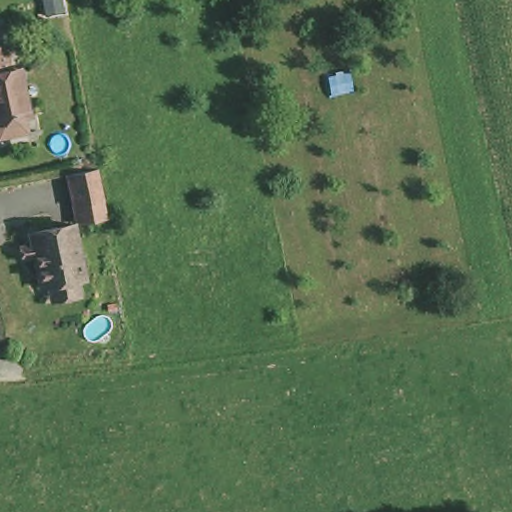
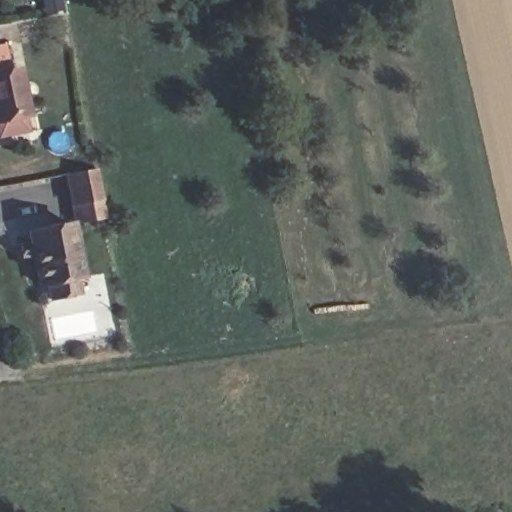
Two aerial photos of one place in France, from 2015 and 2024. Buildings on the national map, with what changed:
unchanged [(17,115),(13,115),(16,131),(0,134),(0,69),(8,68),(17,115)]
unchanged [(97,168),(107,217),(77,222),(67,174),(97,168)]
unchanged [(72,224),(81,276),(39,284),(33,254),(22,256),(20,245),(32,243),(30,232),(72,224)]

